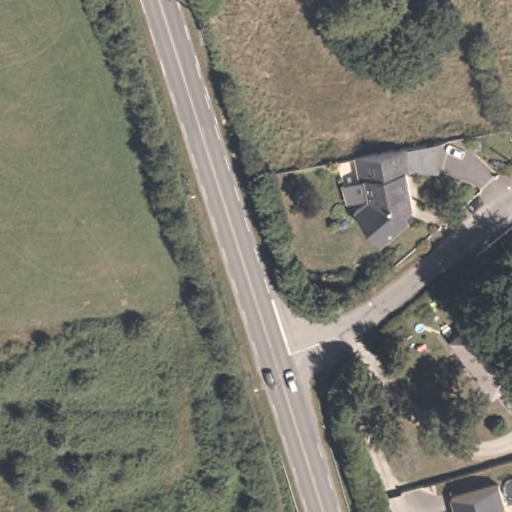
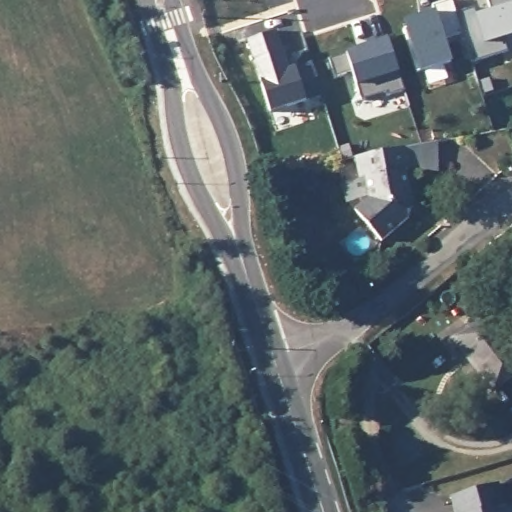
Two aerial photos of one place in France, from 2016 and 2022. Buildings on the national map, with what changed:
new [(472,7),(473,15),(489,9),(487,0),(512,0),(512,35),(503,39),(507,50),(469,62),(461,34),(454,13),(472,7)]
new [(407,27),(405,21),(434,11),(432,6),(451,1),(454,13),(461,34),(445,39),(451,61),(417,72),(404,29),(407,27)]
new [(277,31),(282,51),(288,67),(310,61),(322,95),(306,100),(269,111),(253,60),(247,39),(277,31)]
new [(346,51),(389,37),(400,72),(397,74),(403,90),(384,96),(383,92),(360,99),(356,86),(352,72),(333,77),(326,59),(346,51)]
unchanged [(437,140),(439,168),(410,168),(405,170),(411,192),(414,207),(410,217),(385,242),(357,211),(370,199),(366,179),(360,180),(355,159),(405,147),(437,140)]
unchanged [(483,313),(512,355),(512,373),(485,392),(450,337),(483,313)]
unchanged [(505,508),(498,510),(499,512),(455,512),(452,497),(499,486),(505,508)]

